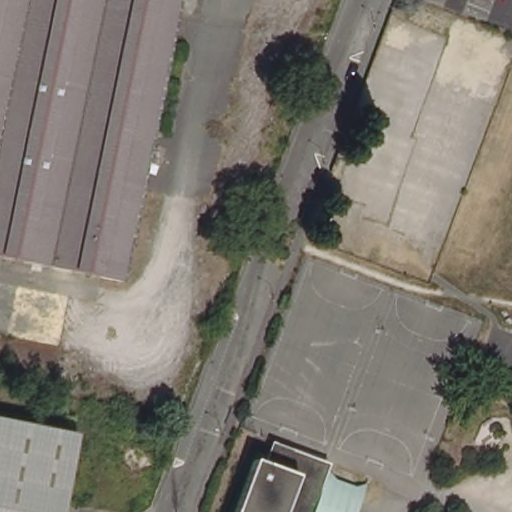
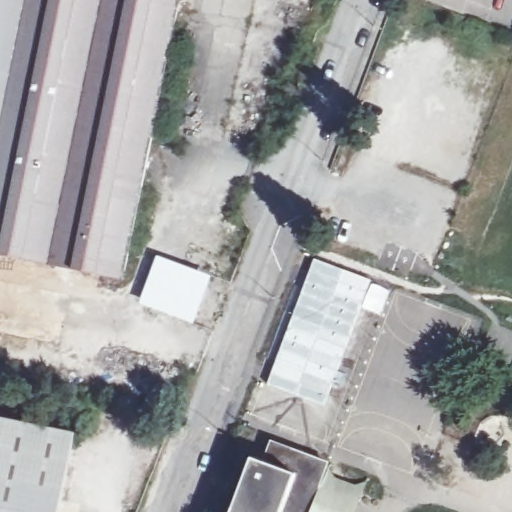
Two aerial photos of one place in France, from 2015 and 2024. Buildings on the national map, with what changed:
unchanged [(189,3),(180,1),(122,283),(0,256),(0,0),(190,0),(189,3)]
new [(156,255),(212,275),(194,323),(138,302),(156,255)]
new [(313,257),(391,289),(381,313),(362,306),(325,405),(266,383),(313,257)]
unchanged [(52,437),(77,444),(63,512),(58,512),(37,507),(36,512),(0,512),(0,420),(53,431),(52,437)]
unchanged [(233,512),(255,456),(270,462),(276,444),(292,450),(292,448),(325,461),(306,512),(233,512)]
unchanged [(356,512),(309,512),(328,461),(370,477),(356,512)]
unchanged [(58,512),(36,512),(37,507),(58,512)]

